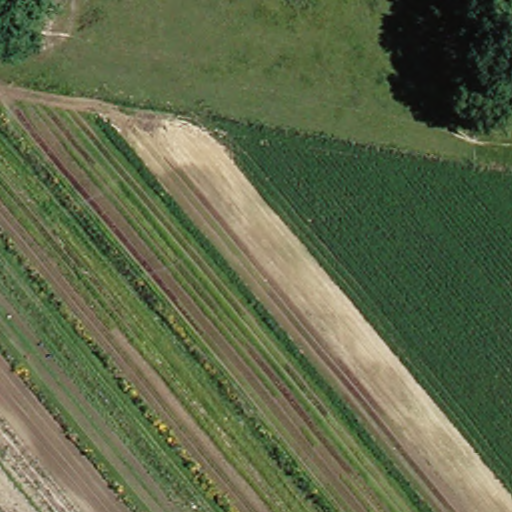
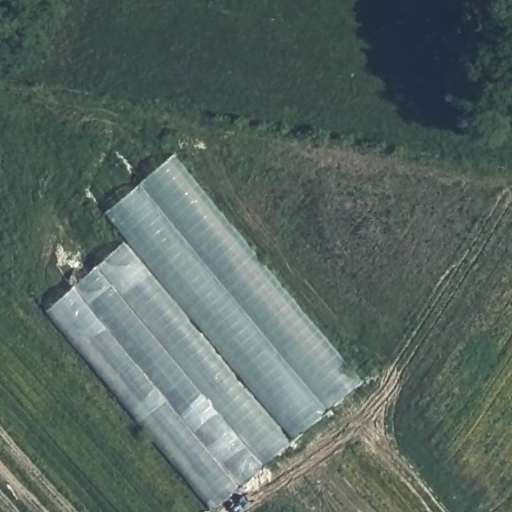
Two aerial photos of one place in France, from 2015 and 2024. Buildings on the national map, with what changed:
new [(125,240),(106,214),(177,157),(360,382),(212,509),(46,308),(125,240)]

